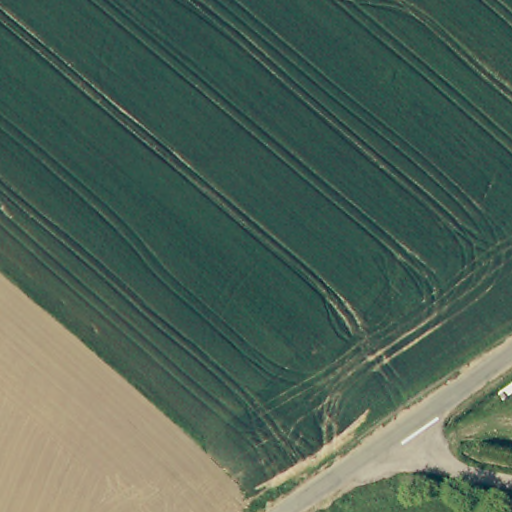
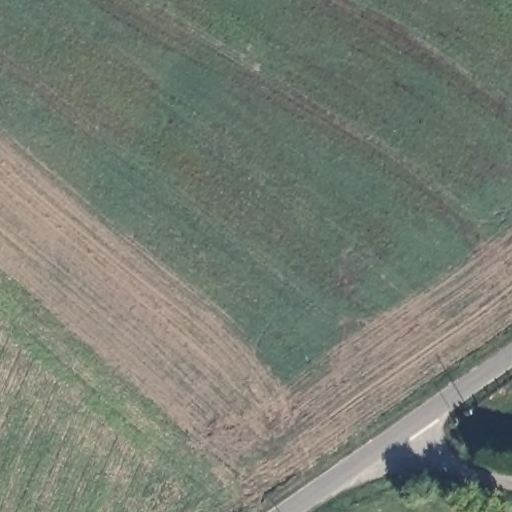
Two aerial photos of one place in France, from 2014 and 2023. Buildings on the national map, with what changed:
[]

